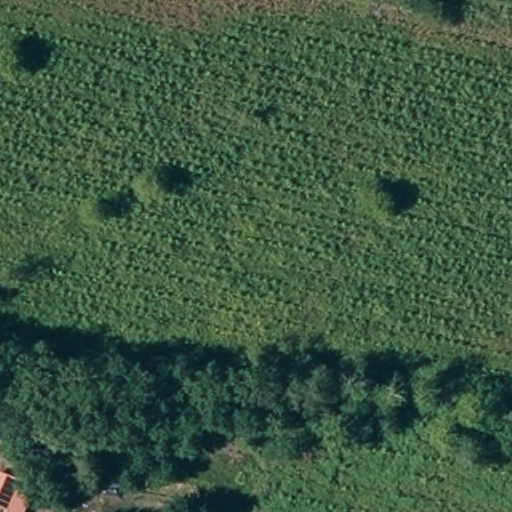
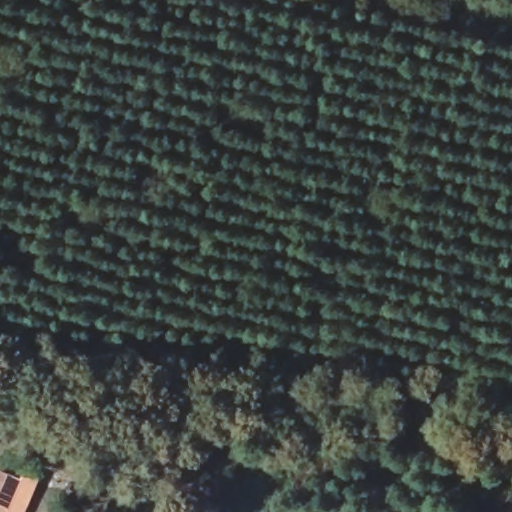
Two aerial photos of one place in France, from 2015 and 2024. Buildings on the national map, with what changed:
unchanged [(0,511),(0,500),(8,481),(21,483),(34,485),(26,512),(2,512),(0,511)]

